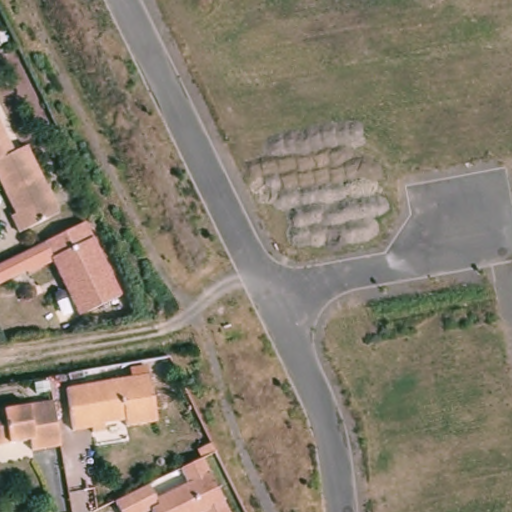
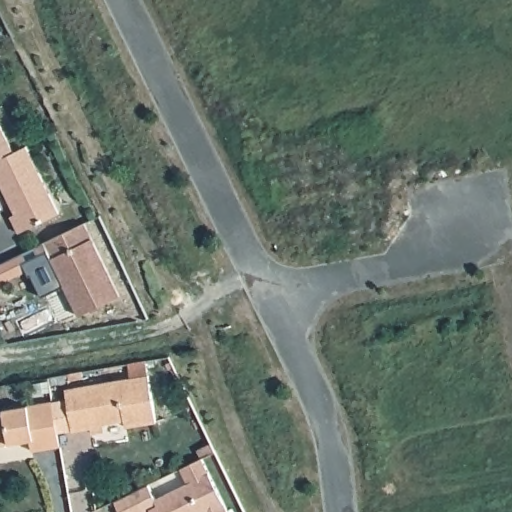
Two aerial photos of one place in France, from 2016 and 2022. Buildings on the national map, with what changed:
unchanged [(0,119),(19,157),(9,161),(0,166),(0,119)]
unchanged [(19,157),(31,151),(64,218),(24,237),(15,221),(20,218),(0,176),(0,166),(9,161),(19,157)]
unchanged [(115,299),(75,319),(49,265),(24,277),(23,274),(0,285),(0,265),(24,254),(39,246),(65,233),(79,226),(115,299)]
unchanged [(148,379),(155,426),(124,431),(124,424),(89,430),(89,432),(71,435),(64,393),(148,379)]
unchanged [(26,451),(24,440),(0,444),(0,409),(46,401),(54,446),(26,451)]
unchanged [(143,487),(150,502),(183,486),(175,471),(187,465),(197,461),(222,512),(113,512),(109,504),(143,487)]

